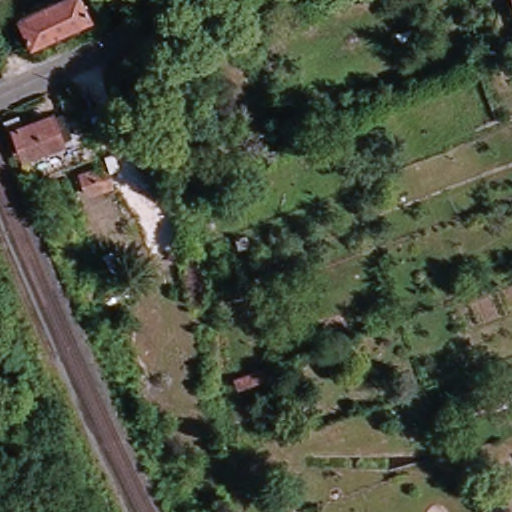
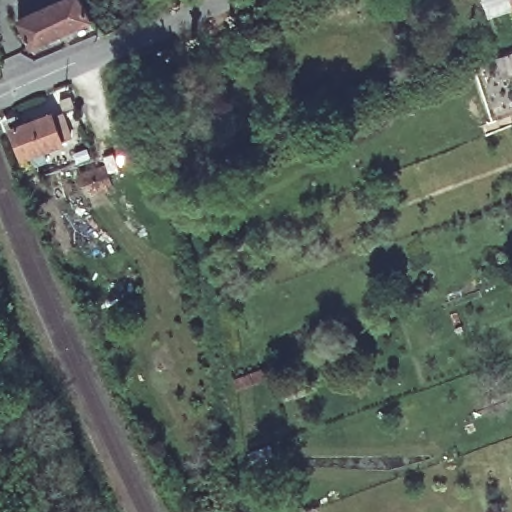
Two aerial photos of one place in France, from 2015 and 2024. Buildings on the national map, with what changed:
unchanged [(43,49),(31,21),(77,0),(94,0),(105,20),(43,49)]
unchanged [(85,94),(90,107),(76,113),(71,100),(85,94)]
unchanged [(28,131),(62,116),(73,140),(38,155),(28,131)]
unchanged [(105,167),(104,157),(115,154),(121,179),(111,182),(114,190),(84,199),(75,175),(105,167)]
unchanged [(277,508),(289,503),(292,512),(278,512),(277,508)]

